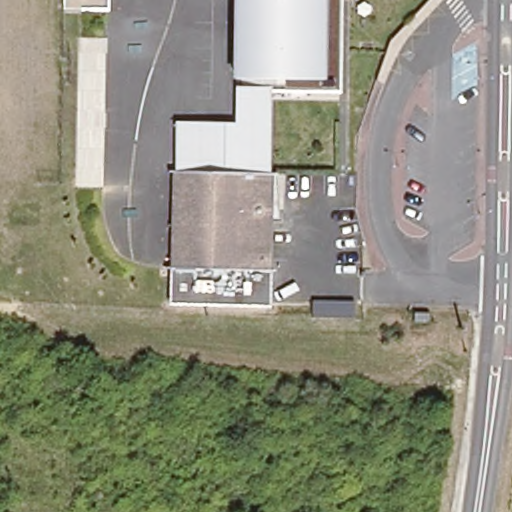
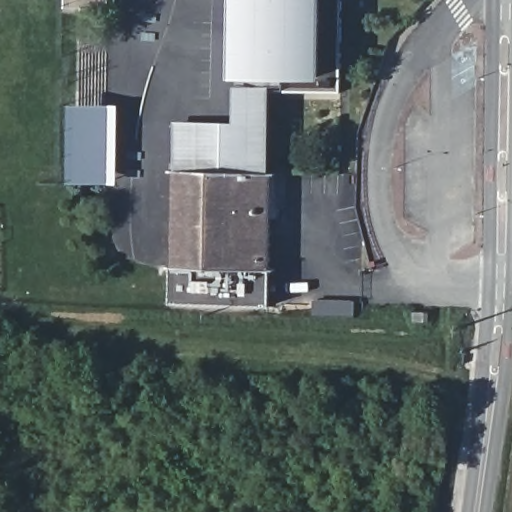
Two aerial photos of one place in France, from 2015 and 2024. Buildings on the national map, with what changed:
unchanged [(65,11),(64,0),(108,0),(108,12),(65,11)]
unchanged [(175,121),(233,122),(235,85),(247,86),(247,77),(230,77),(231,0),(340,0),(339,92),(271,92),(268,174),(176,170),(175,121)]
new [(119,185),(70,184),(71,104),(120,105),(119,185)]
unchanged [(271,305),(169,303),(171,170),(176,170),(268,174),(274,174),(271,305)]
new [(313,301),(355,302),(355,319),(313,317),(313,301)]

